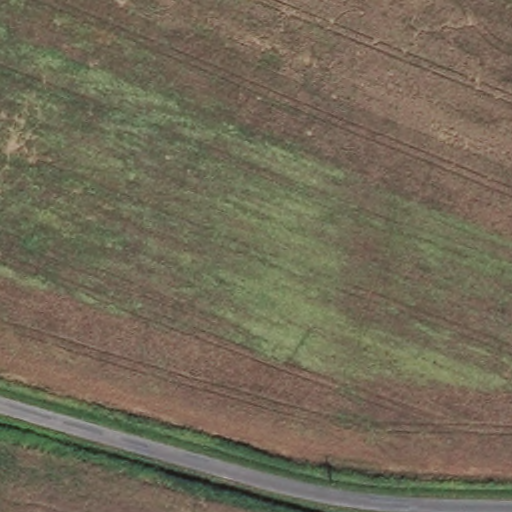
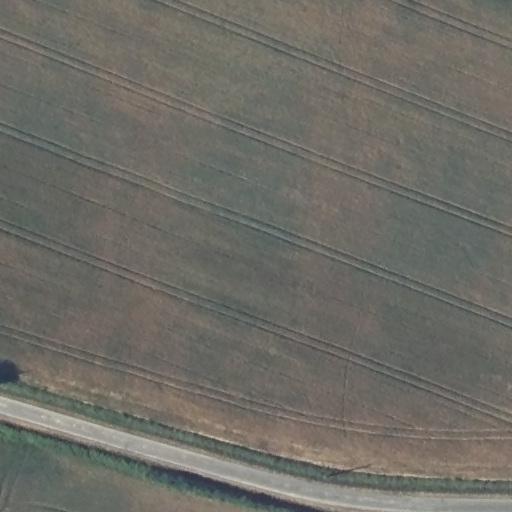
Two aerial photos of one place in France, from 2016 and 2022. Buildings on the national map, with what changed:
[]

